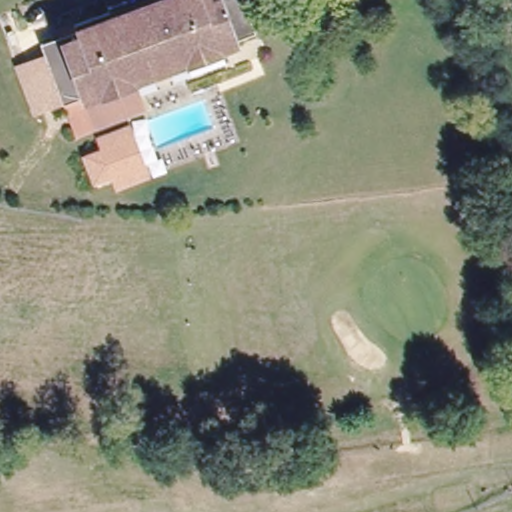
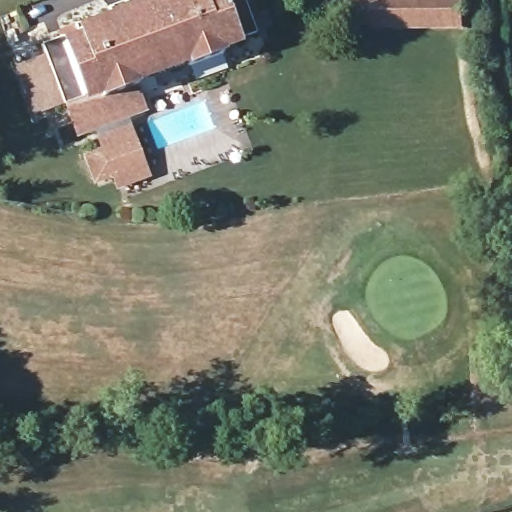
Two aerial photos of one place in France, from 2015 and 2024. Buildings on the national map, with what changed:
unchanged [(69,103),(56,61),(53,50),(50,41),(80,29),(78,21),(111,8),(110,3),(117,0),(245,0),(257,34),(227,46),(229,55),(192,68),(136,88),(146,111),(79,133),(69,103)]
new [(372,30),(372,25),(351,25),(351,0),(457,0),(457,29),(372,30)]
unchanged [(53,50),(56,61),(69,103),(35,114),(17,65),(53,50)]
unchanged [(131,123),(151,176),(115,190),(111,178),(94,184),(84,154),(101,148),(96,136),(131,123)]

